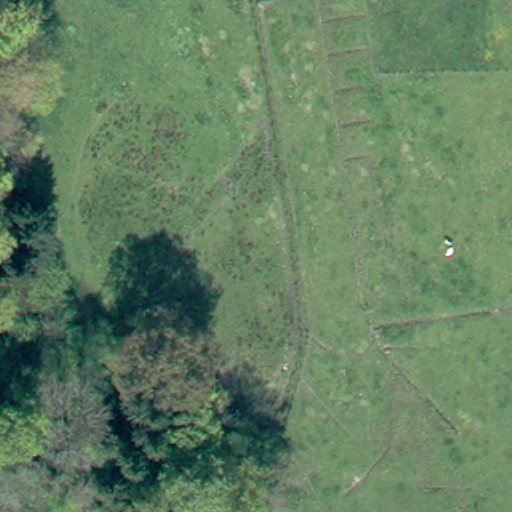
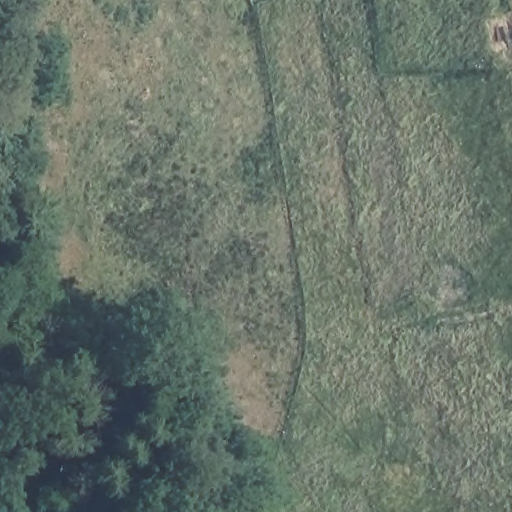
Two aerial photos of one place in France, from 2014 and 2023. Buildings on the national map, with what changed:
unchanged [(74,305),(58,309),(53,289),(69,286),(74,305)]

